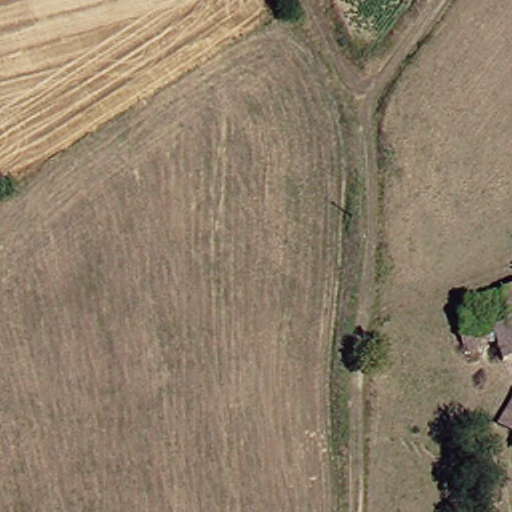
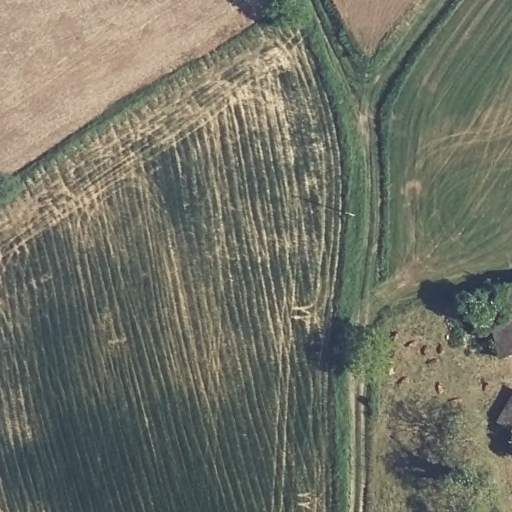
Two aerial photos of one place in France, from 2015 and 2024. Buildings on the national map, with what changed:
unchanged [(457,360),(447,310),(512,292),(512,360),(497,364),(495,354),(479,356),(457,360)]

